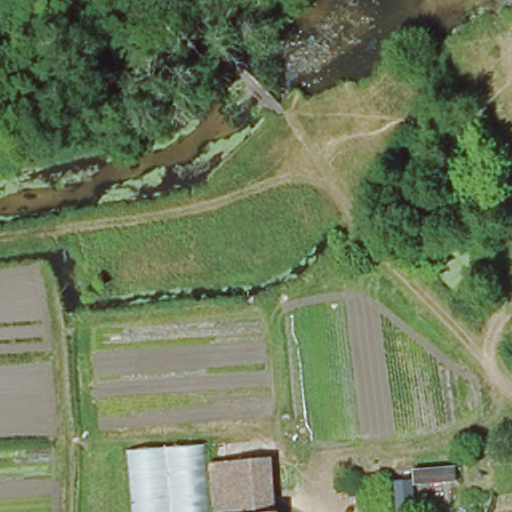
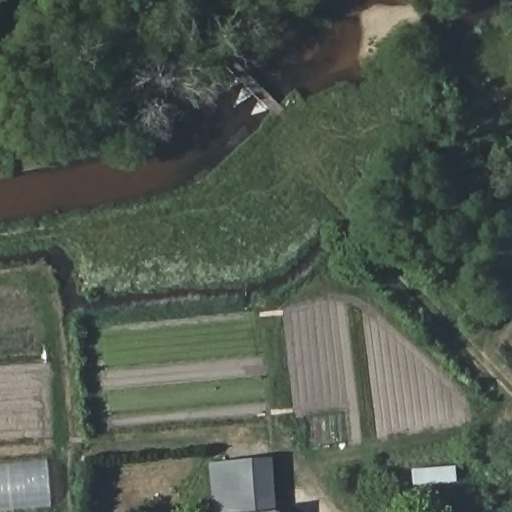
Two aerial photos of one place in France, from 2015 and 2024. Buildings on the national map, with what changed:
demolished [(141,512),(137,450),(191,446),(195,512),(141,512)]
new [(49,506),(0,510),(0,462),(47,459),(49,506)]
unchanged [(227,461),(263,460),(272,459),(274,512),(215,512),(212,462),(227,461)]
demolished [(87,512),(89,486),(121,487),(120,512),(87,512)]

